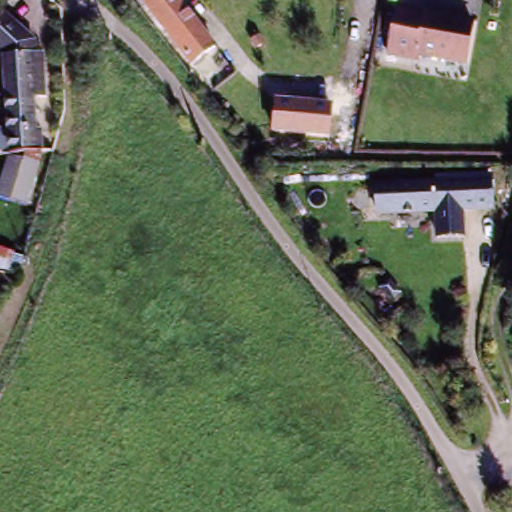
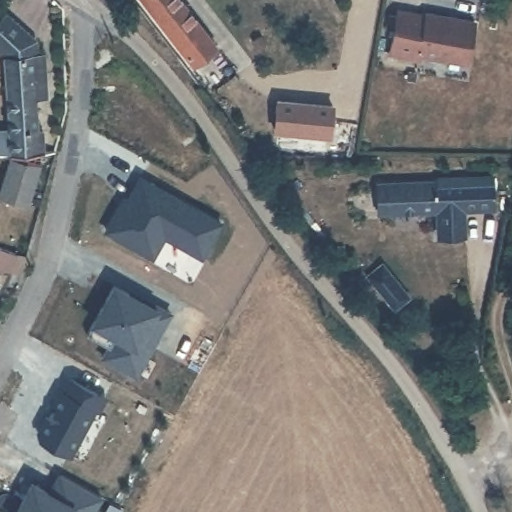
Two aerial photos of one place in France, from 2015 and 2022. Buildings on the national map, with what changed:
unchanged [(190,63),(143,0),(186,0),(218,42),(212,46),(190,63)]
unchanged [(0,147),(0,125),(10,124),(7,52),(0,45),(0,17),(7,9),(37,36),(37,50),(46,50),(49,93),(37,93),(40,128),(44,128),(45,149),(45,154),(29,204),(0,195),(0,182),(11,148),(0,147)]
unchanged [(465,67),(418,59),(417,63),(389,58),(397,14),(426,19),(426,17),(473,26),(465,67)]
unchanged [(335,101),(332,139),(272,133),(275,97),(335,101)]
unchanged [(493,206),(462,207),(462,233),(436,233),(436,207),(376,207),(376,179),(437,178),(437,174),(492,174),(493,206)]
new [(113,211),(117,213),(135,180),(216,224),(197,258),(159,238),(147,259),(101,233),(113,211)]
unchanged [(7,274),(0,273),(0,253),(14,259),(7,274)]
unchanged [(391,300),(380,287),(388,278),(401,292),(391,300)]
new [(111,287),(132,299),(134,297),(167,314),(133,377),(100,359),(106,349),(84,337),(111,287)]
new [(45,419),(47,420),(52,411),(50,409),(59,393),(61,394),(67,381),(102,399),(95,414),(105,419),(81,463),(39,441),(37,434),(45,419)]
new [(31,485),(49,494),(60,475),(99,497),(91,512),(16,512),(31,485)]

